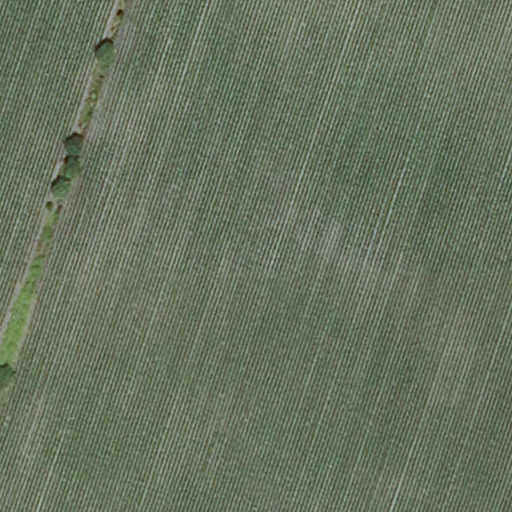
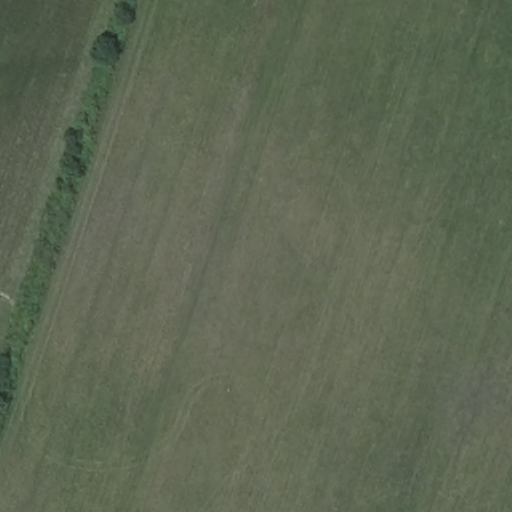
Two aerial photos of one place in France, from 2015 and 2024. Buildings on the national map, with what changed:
[]

